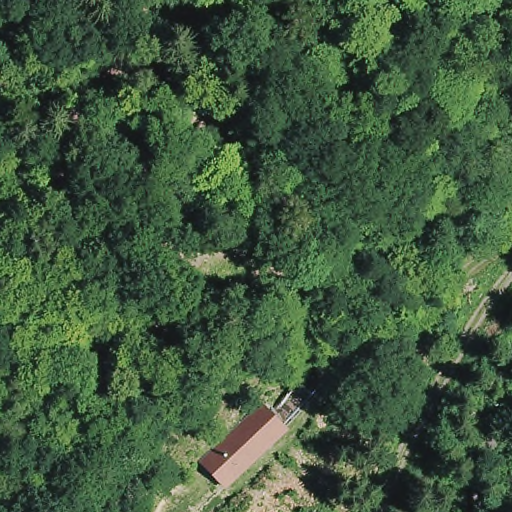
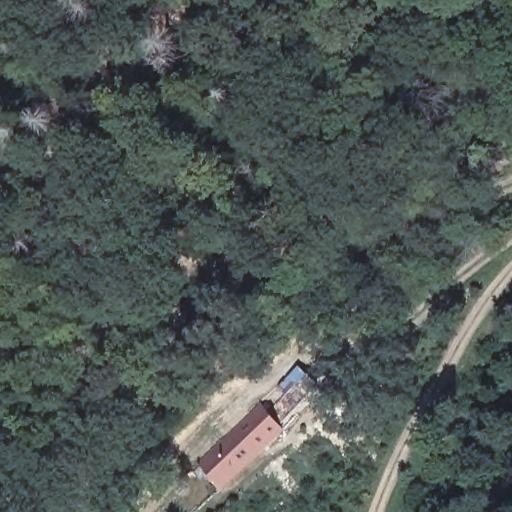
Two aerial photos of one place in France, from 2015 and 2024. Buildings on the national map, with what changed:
unchanged [(199,471),(259,415),(282,440),(222,496),(199,471)]

